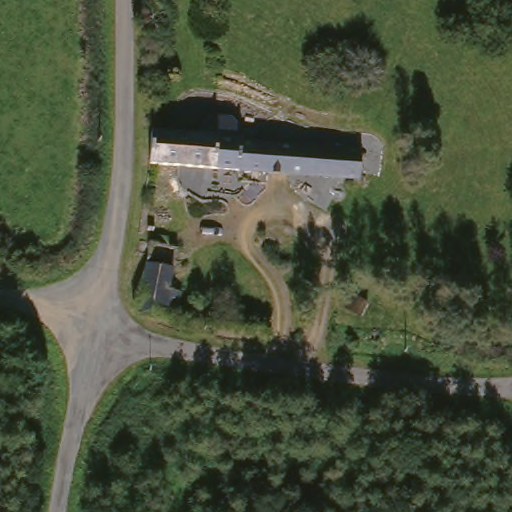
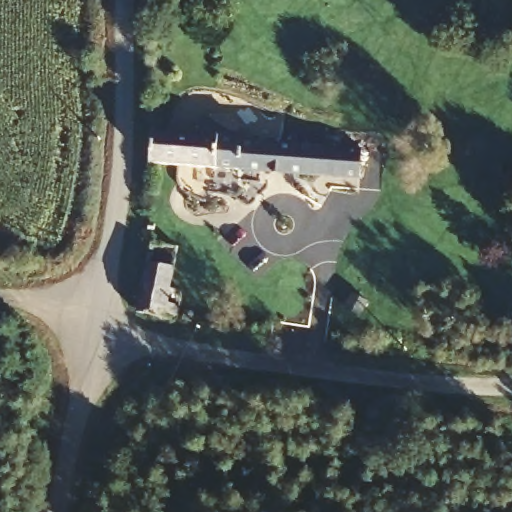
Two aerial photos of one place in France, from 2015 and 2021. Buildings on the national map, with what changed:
unchanged [(144,135),(208,140),(234,142),(234,146),(295,151),(352,156),(349,184),(264,178),(206,173),(141,168),(144,135)]
unchanged [(142,273),(131,272),(135,257),(174,262),(166,304),(178,306),(174,332),(136,325),(142,273)]

